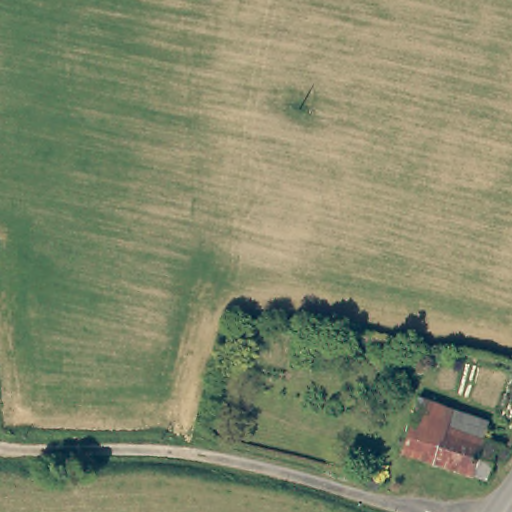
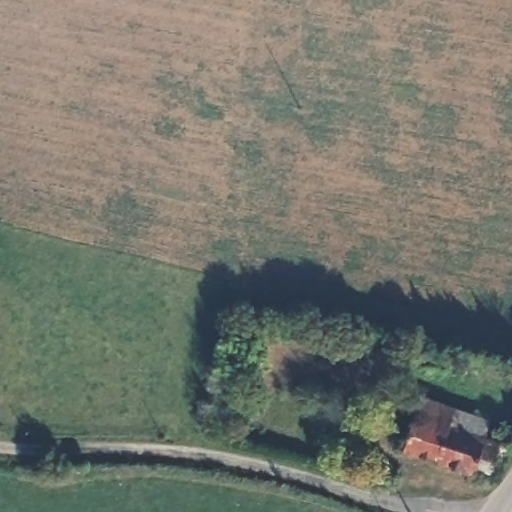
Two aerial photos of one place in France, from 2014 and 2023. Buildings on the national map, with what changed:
unchanged [(449,414),(448,428),(492,441),(480,459),(471,456),(465,472),(405,453),(415,421),(417,406),(449,414)]

